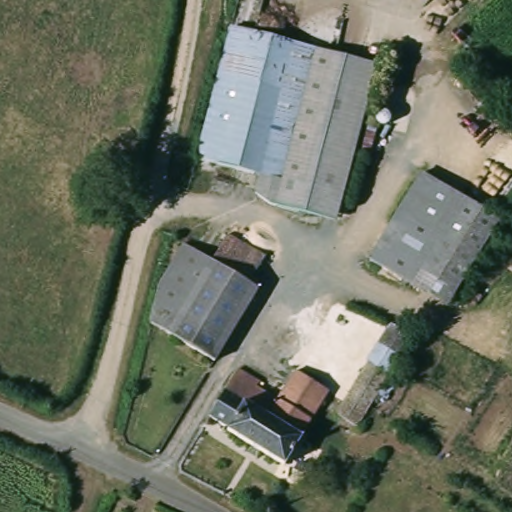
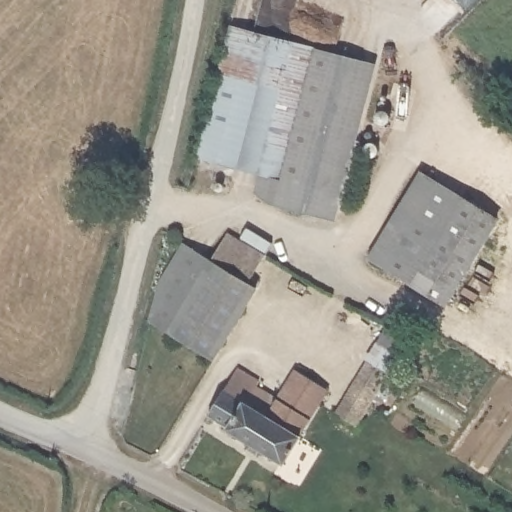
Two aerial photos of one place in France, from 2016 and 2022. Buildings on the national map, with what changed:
unchanged [(300,180),(266,172),(196,155),(228,25),(330,49),(300,180)]
unchanged [(378,61),(342,215),(282,201),(262,190),(266,172),(300,180),(330,49),(378,61)]
unchanged [(410,286),(366,261),(416,174),(461,197),(410,286)]
unchanged [(461,197),(495,217),(445,305),(410,286),(461,197)]
unchanged [(182,245),(209,260),(225,232),(262,256),(245,282),(254,287),(210,360),(147,322),(152,303),(155,291),(157,283),(182,245)]
unchanged [(356,432),(335,419),(365,367),(390,326),(411,338),(356,432)]
unchanged [(297,437),(300,439),(282,466),(225,432),(226,429),(206,417),(235,368),(258,382),(256,386),(275,398),(292,368),(325,387),(297,437)]

